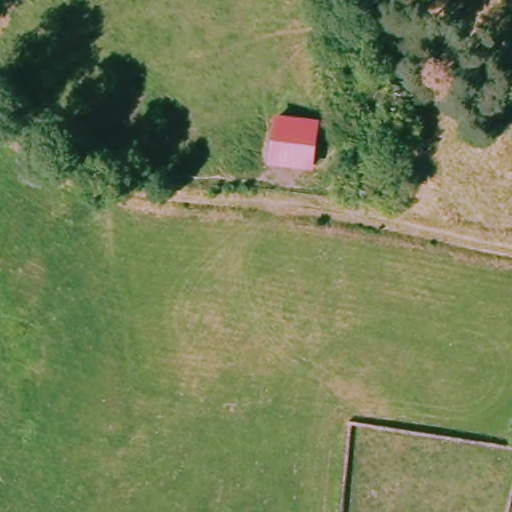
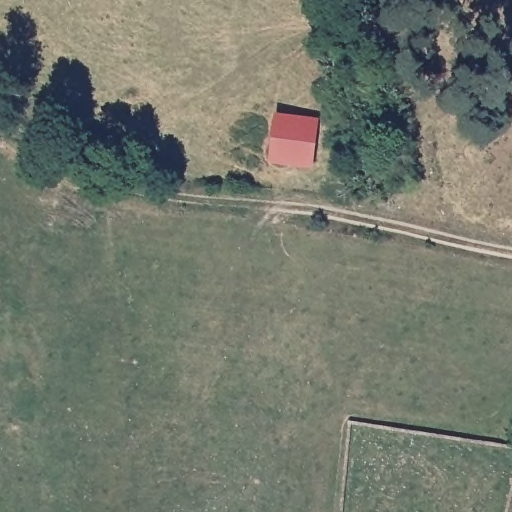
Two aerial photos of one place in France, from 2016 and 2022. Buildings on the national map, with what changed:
unchanged [(309,167),(269,162),(276,116),(315,122),(309,167)]

